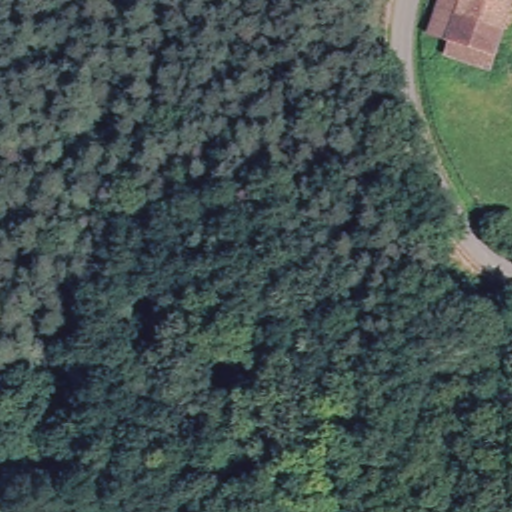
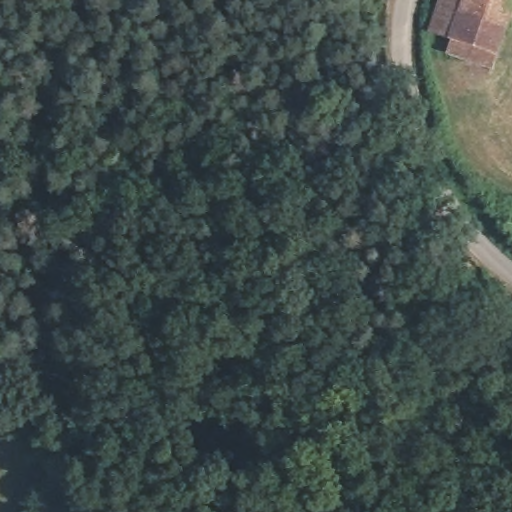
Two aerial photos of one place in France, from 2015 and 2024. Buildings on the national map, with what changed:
unchanged [(427,36),(440,0),(463,0),(456,17),(447,42),(427,36)]
unchanged [(456,17),(463,0),(511,0),(501,29),(456,17)]
unchanged [(487,70),(442,57),(447,42),(456,17),(501,29),(487,70)]

